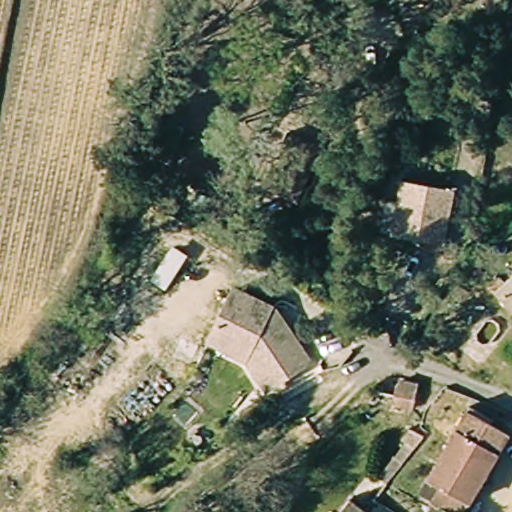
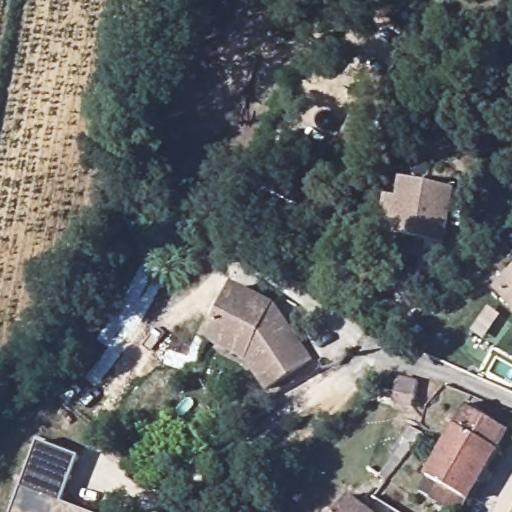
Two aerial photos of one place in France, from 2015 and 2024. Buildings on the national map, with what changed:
unchanged [(400,181),(452,189),(444,244),(425,241),(426,234),(415,231),(414,239),(392,235),(400,181)]
unchanged [(186,257),(165,293),(149,282),(171,248),(186,257)]
unchanged [(496,292),(512,276),(512,308),(496,292)]
unchanged [(243,286),(283,305),(319,356),(278,385),(258,357),(219,339),(243,286)]
unchanged [(421,387),(417,413),(377,404),(373,403),(375,378),(421,387)]
unchanged [(443,486),(430,478),(472,412),(510,439),(470,505),(465,512),(454,512),(435,500),(443,486)]
new [(79,458),(62,503),(85,512),(14,512),(39,443),(79,458)]
unchanged [(366,512),(341,512),(348,500),(366,512)]

